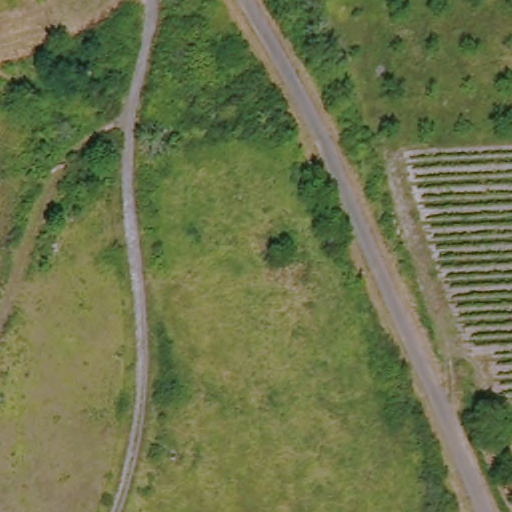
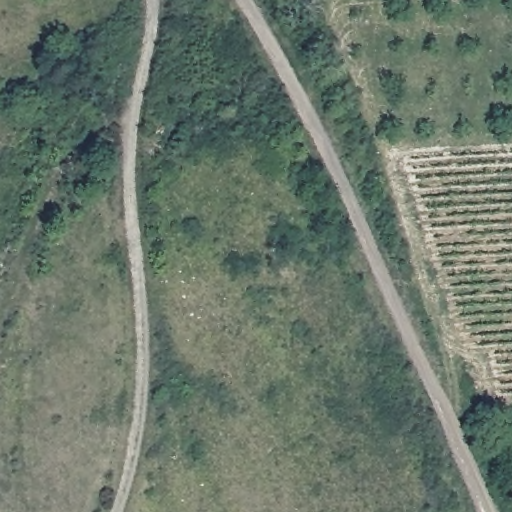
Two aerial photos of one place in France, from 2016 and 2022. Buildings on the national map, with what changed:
[]

